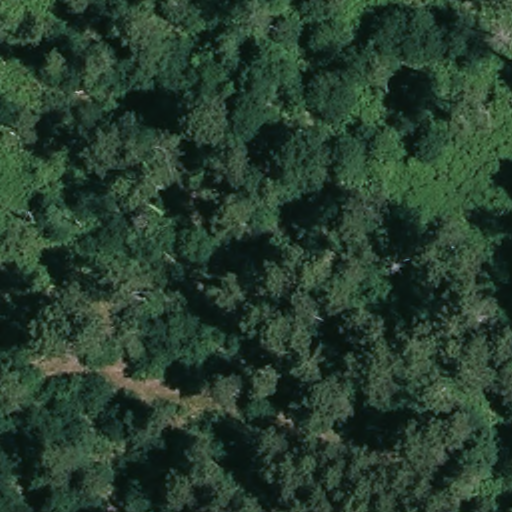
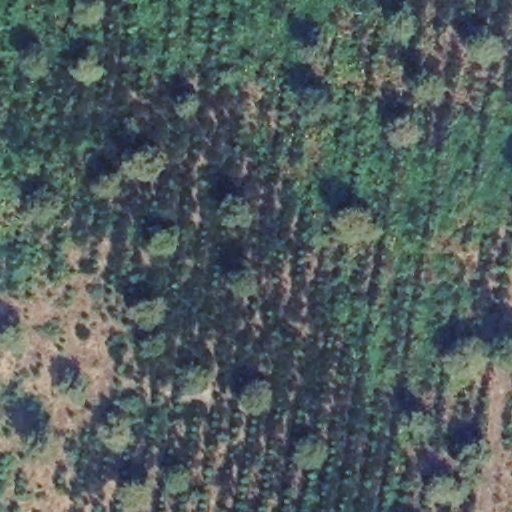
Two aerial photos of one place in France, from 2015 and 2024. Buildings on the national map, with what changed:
[]

